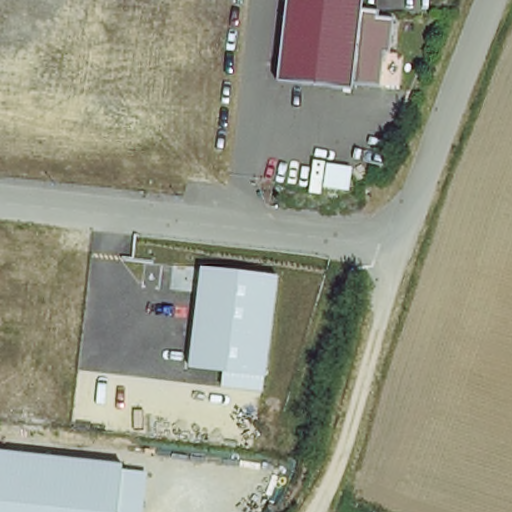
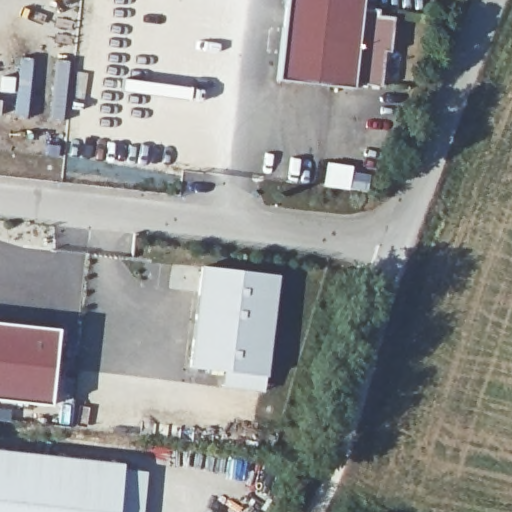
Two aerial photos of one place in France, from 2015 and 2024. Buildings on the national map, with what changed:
unchanged [(377,7),(375,16),(393,17),(389,50),(382,51),(380,81),(279,76),(287,0),(359,0),(359,5),(377,7)]
unchanged [(262,391),(222,387),(223,372),(190,367),(201,267),(277,276),(262,391)]
new [(59,327),(49,408),(0,404),(0,321),(59,327)]
unchanged [(124,461),(119,512),(0,512),(0,447),(124,461)]
unchanged [(147,472),(142,512),(119,512),(123,469),(147,472)]

